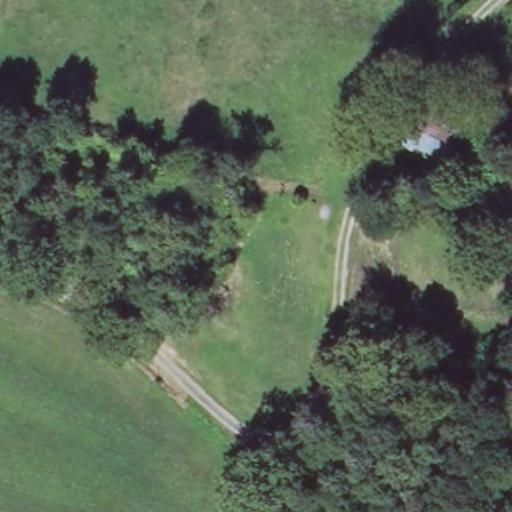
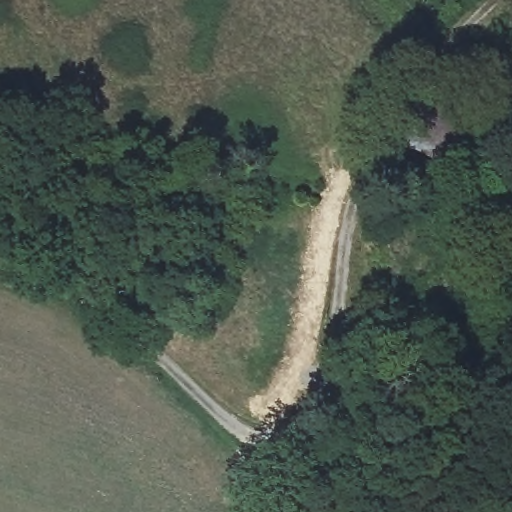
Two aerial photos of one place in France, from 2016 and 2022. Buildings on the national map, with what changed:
unchanged [(475,117),(448,178),(414,167),(421,148),(404,140),(428,97),(475,117)]

